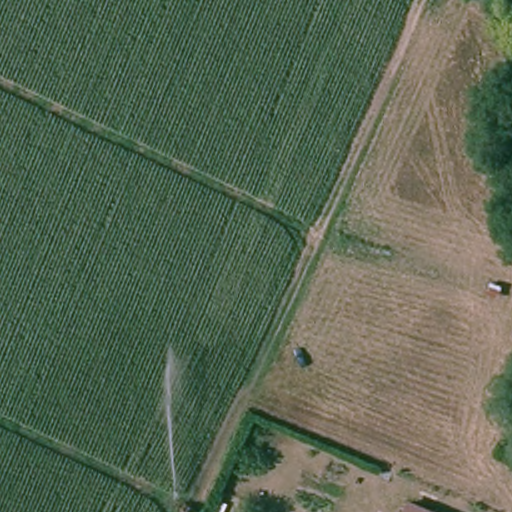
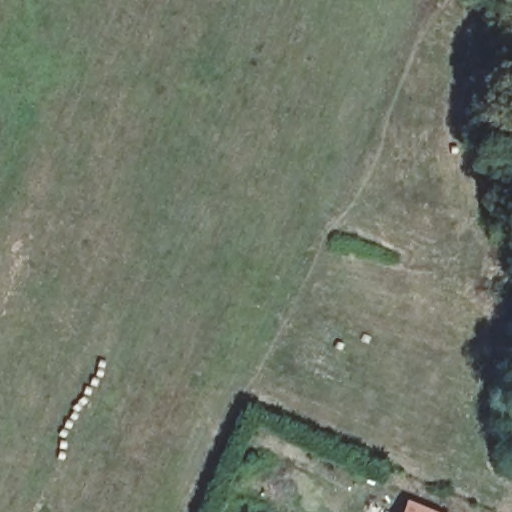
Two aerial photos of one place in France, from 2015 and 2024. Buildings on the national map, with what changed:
unchanged [(407,504),(429,512),(405,512),(407,504)]

